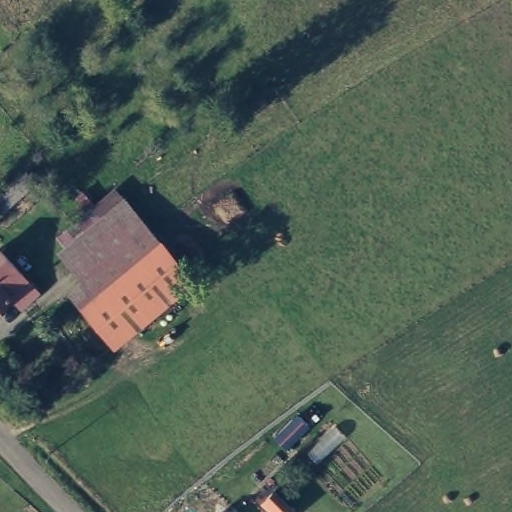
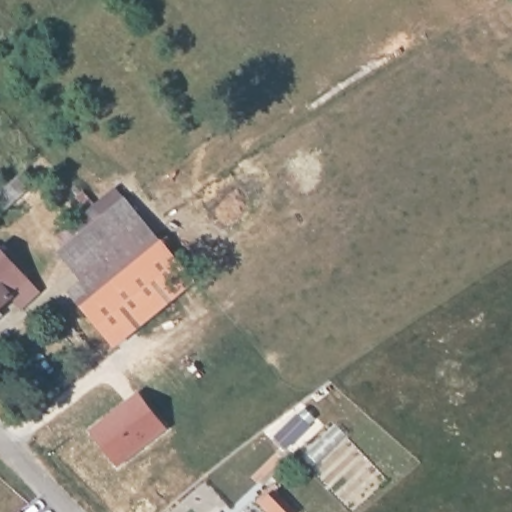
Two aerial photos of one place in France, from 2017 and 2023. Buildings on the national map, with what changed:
unchanged [(0,203),(0,193),(26,170),(36,181),(5,209),(0,203)]
unchanged [(154,223),(92,273),(70,247),(73,244),(70,241),(100,216),(128,193),(129,192),(154,223)]
unchanged [(120,340),(88,302),(105,288),(92,273),(154,223),(197,276),(120,340)]
unchanged [(0,249),(28,280),(0,306),(0,249)]
unchanged [(0,316),(0,312),(2,315),(0,316)]
new [(136,393),(168,429),(119,466),(91,427),(136,393)]
unchanged [(295,512),(274,512),(263,502),(275,491),(295,512)]

